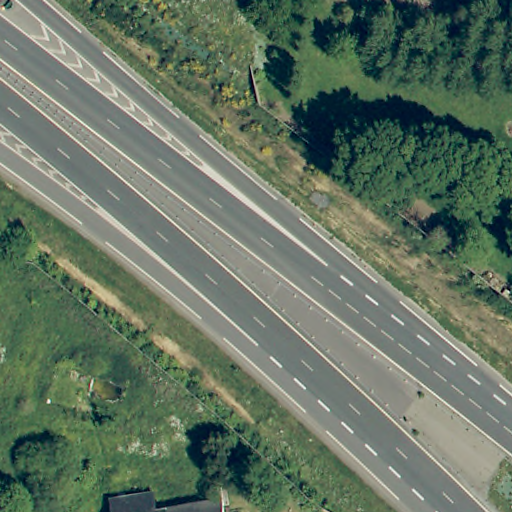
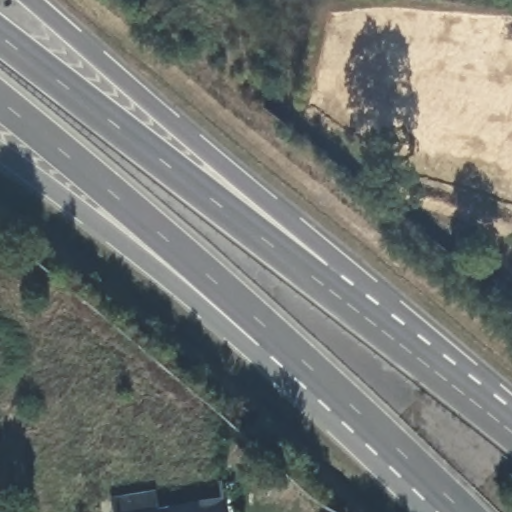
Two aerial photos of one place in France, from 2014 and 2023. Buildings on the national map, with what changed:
unchanged [(106,500),(150,491),(154,510),(194,505),(196,512),(108,512),(106,500)]
unchanged [(223,501),(225,512),(196,512),(194,505),(223,501)]

